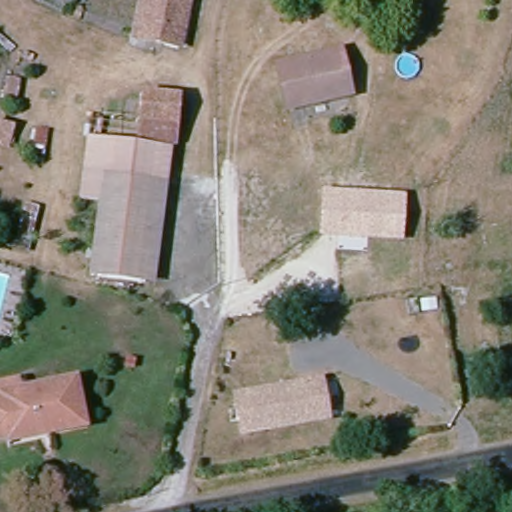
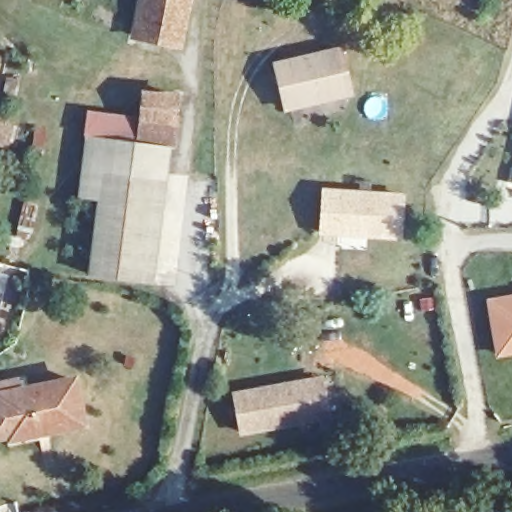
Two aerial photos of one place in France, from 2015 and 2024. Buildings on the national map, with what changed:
unchanged [(150,36),(154,0),(191,0),(185,39),(150,36)]
unchanged [(341,49),(349,98),(328,103),(311,57),(341,49)]
unchanged [(274,63),(294,60),(311,57),(328,103),(300,108),(281,111),(274,63)]
unchanged [(140,94),(175,100),(168,142),(133,137),(140,94)]
unchanged [(145,193),(127,190),(105,187),(103,204),(77,200),(86,133),(133,137),(168,142),(161,196),(145,193)]
unchanged [(93,266),(105,187),(145,193),(161,196),(150,275),(140,274),(93,266)]
unchanged [(319,233),(322,189),(407,194),(404,240),(319,233)]
unchanged [(4,250),(0,249),(0,234),(8,235),(4,250)]
new [(499,353),(488,298),(512,294),(512,350),(499,353)]
unchanged [(6,439),(0,440),(0,378),(15,376),(16,385),(74,375),(83,427),(54,430),(54,439),(8,446),(6,439)]
unchanged [(319,378),(327,416),(240,432),(234,394),(319,378)]

